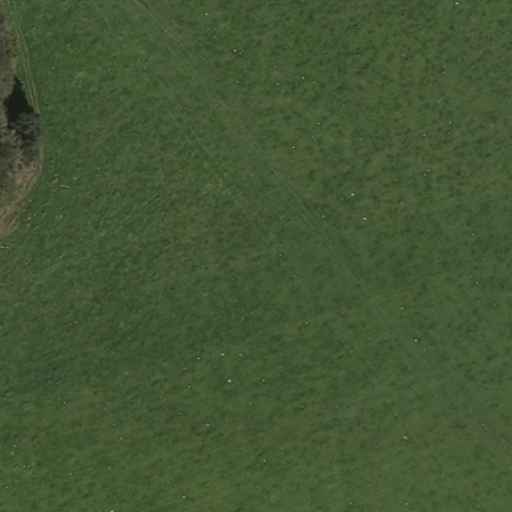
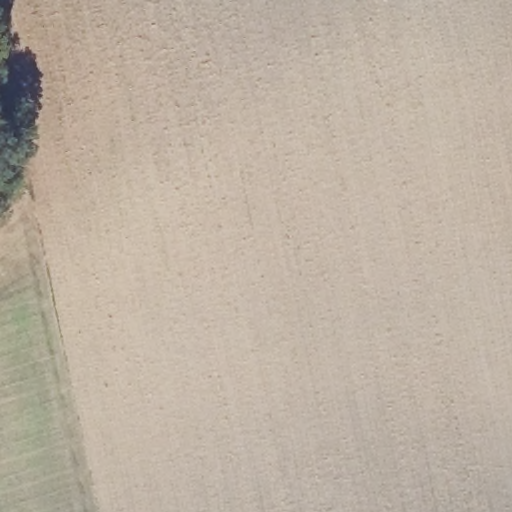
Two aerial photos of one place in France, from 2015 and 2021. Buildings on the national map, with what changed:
[]

